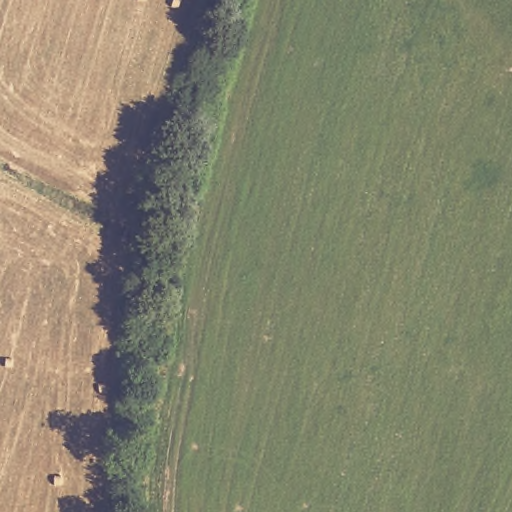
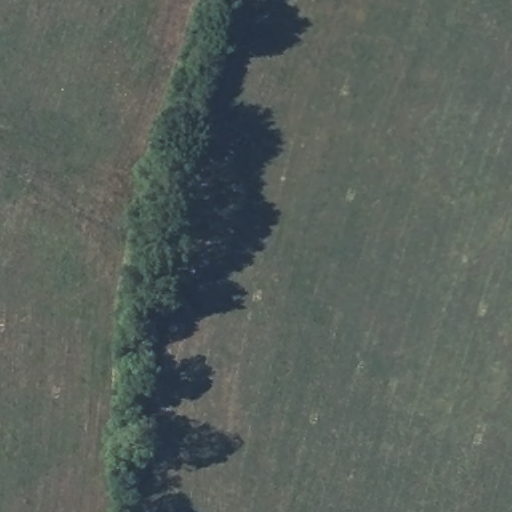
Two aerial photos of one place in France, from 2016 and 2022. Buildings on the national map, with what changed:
[]

